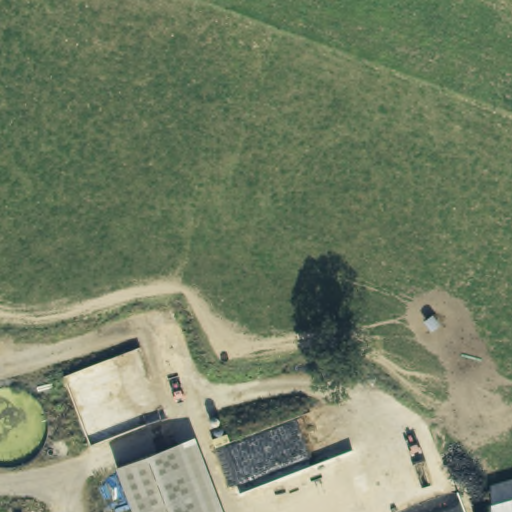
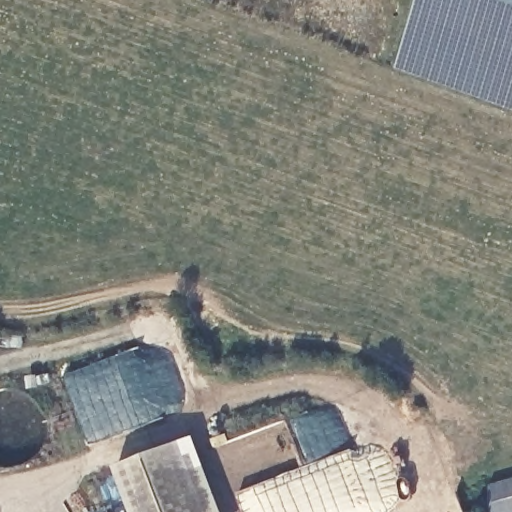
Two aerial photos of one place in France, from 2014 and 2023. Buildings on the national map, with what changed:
new [(512,112),(394,69),(419,0),(512,0),(512,112)]
unchanged [(182,448),(204,512),(140,512),(125,468),(182,448)]
unchanged [(512,480),(512,512),(490,512),(489,487),(512,480)]

